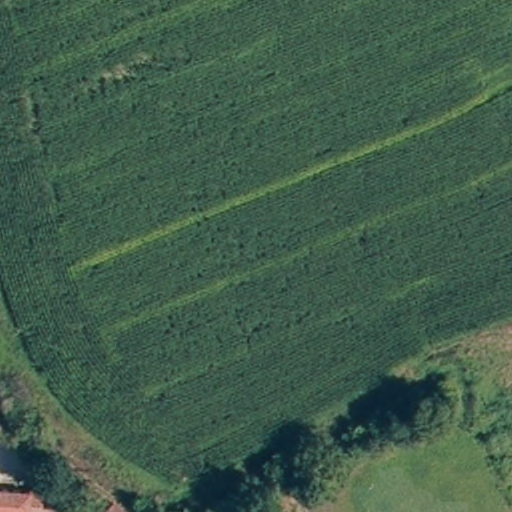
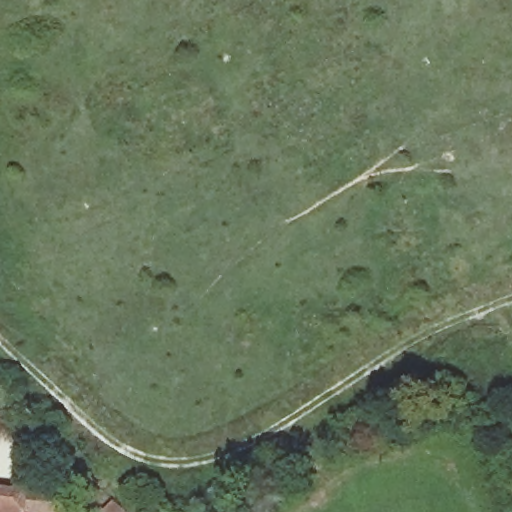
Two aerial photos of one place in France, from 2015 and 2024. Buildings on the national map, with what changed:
unchanged [(61,504),(58,512),(0,512),(0,483),(44,489),(61,504)]

